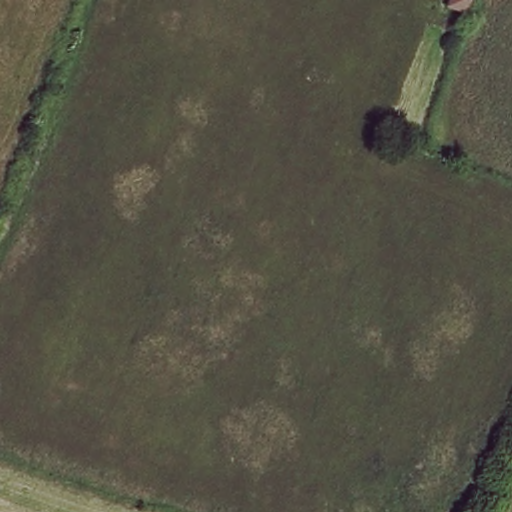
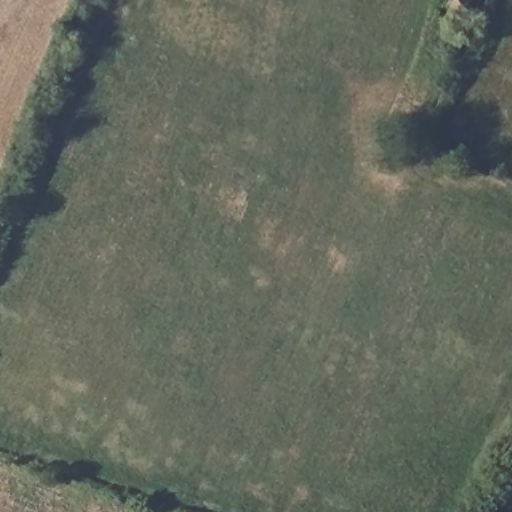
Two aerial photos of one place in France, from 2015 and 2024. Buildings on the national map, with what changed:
unchanged [(452,0),(468,0),(466,6),(452,0)]

